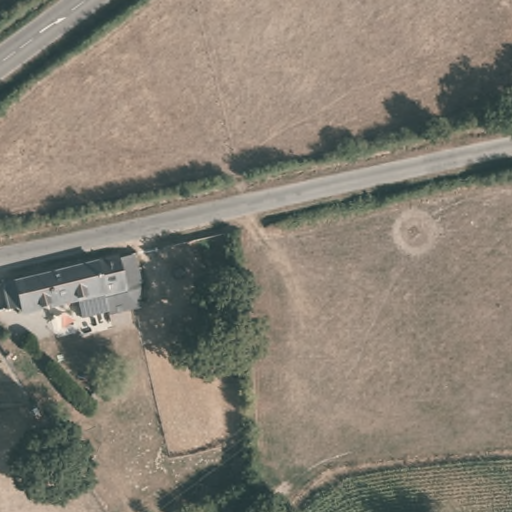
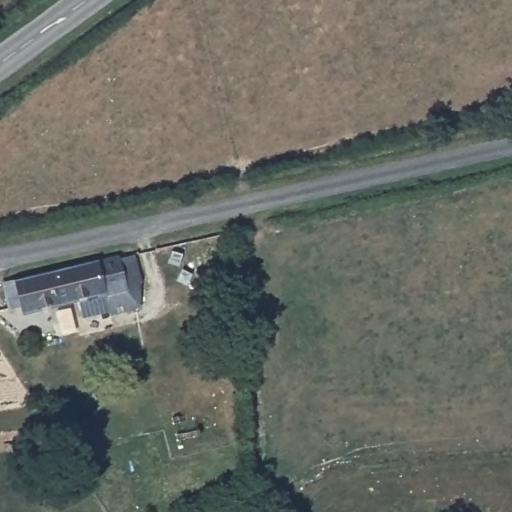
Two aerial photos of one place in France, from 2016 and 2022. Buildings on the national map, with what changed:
unchanged [(19,292),(7,295),(3,274),(119,252),(125,288),(135,286),(137,301),(78,312),(74,293),(21,303),(19,292)]

